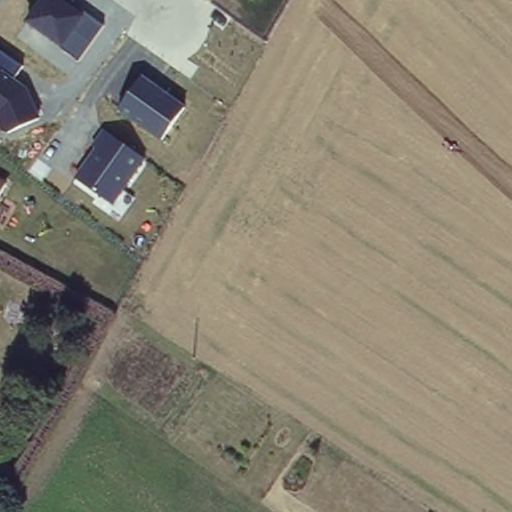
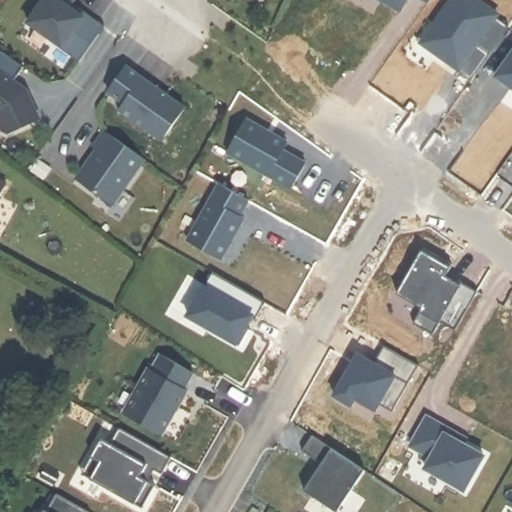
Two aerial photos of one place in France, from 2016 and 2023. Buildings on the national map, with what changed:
unchanged [(25,23),(40,0),(71,0),(106,27),(78,63),(25,23)]
unchanged [(3,133),(0,126),(0,51),(21,65),(12,79),(26,90),(42,118),(3,133)]
new [(512,51),(512,87),(495,75),(512,51)]
unchanged [(161,141),(117,108),(141,74),(187,108),(161,141)]
new [(292,186),(227,149),(246,116),(263,126),(271,131),(288,140),(283,148),(306,161),(292,186)]
unchanged [(115,205),(75,177),(105,131),(145,159),(115,205)]
unchanged [(6,183),(0,194),(0,180),(6,183)]
new [(220,257),(188,238),(219,181),(248,197),(239,212),(244,215),(234,233),(229,241),(220,257)]
new [(457,328),(442,319),(434,332),(414,321),(423,305),(398,290),(424,245),(453,262),(445,275),(457,282),(459,278),(479,289),(457,328)]
new [(263,303),(255,319),(251,316),(245,327),(196,296),(210,273),(263,303)]
new [(245,327),(235,346),(184,317),(196,296),(245,327)]
new [(151,369),(161,353),(194,372),(186,388),(189,390),(164,435),(122,412),(148,366),(151,369)]
new [(476,470),(417,433),(428,414),(450,427),(467,437),(464,442),(447,432),(485,454),(476,470)]
new [(146,463),(140,475),(155,483),(142,506),(90,476),(81,471),(91,454),(101,436),(110,441),(119,425),(171,455),(161,472),(146,463)]
new [(476,470),(463,491),(423,468),(429,458),(408,447),(417,433),(476,470)]
new [(333,447),(365,470),(338,512),(305,490),(323,462),(303,449),(312,435),(333,447)]
new [(147,479),(140,475),(146,463),(154,467),(147,479)]
new [(88,512),(44,512),(46,510),(48,511),(57,494),(88,512)]
new [(254,507),(259,512),(251,512),(254,507)]

